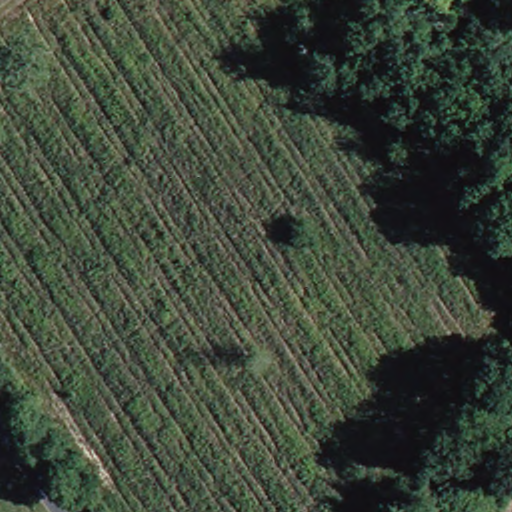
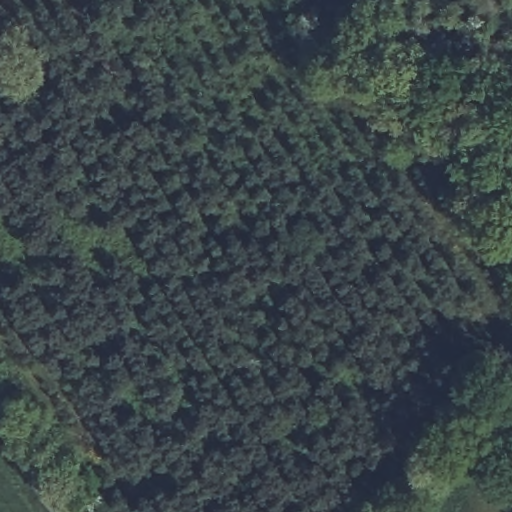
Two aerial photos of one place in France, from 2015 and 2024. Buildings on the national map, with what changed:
unchanged [(512,17),(512,45),(500,38),(512,17)]

